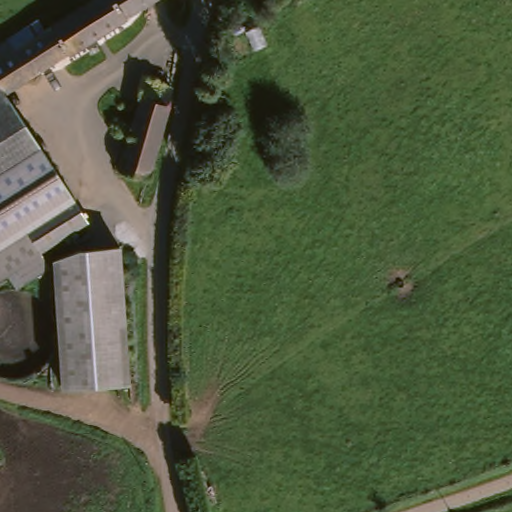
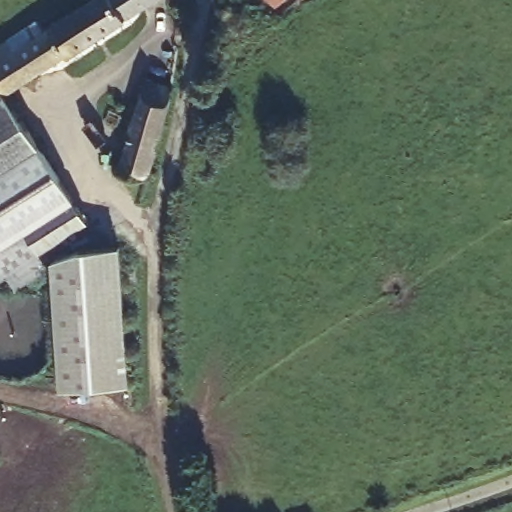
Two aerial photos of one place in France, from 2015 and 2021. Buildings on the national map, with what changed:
unchanged [(92,0),(154,0),(13,89),(0,70),(0,57),(92,0)]
unchanged [(280,4),(276,0),(283,0),(280,4)]
unchanged [(13,89),(93,217),(0,275),(0,70),(13,89)]
unchanged [(156,165),(126,153),(144,88),(177,98),(156,165)]
unchanged [(60,258),(128,253),(136,382),(69,386),(60,258)]

